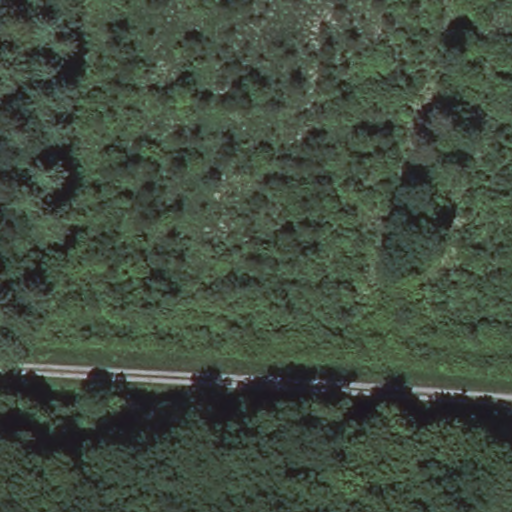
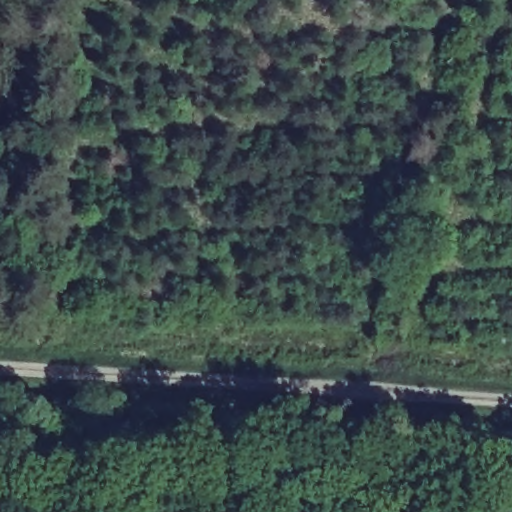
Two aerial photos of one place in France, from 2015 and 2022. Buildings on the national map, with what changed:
[]

